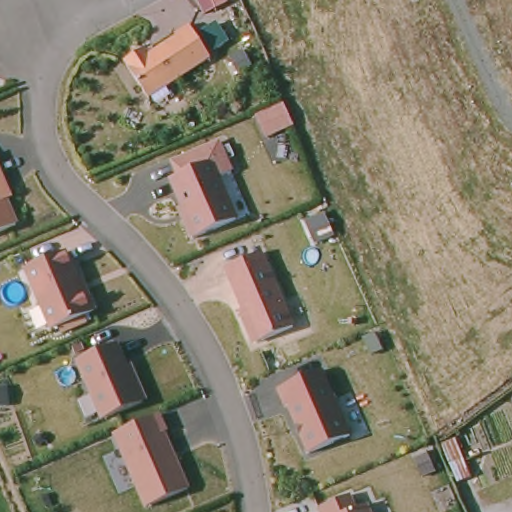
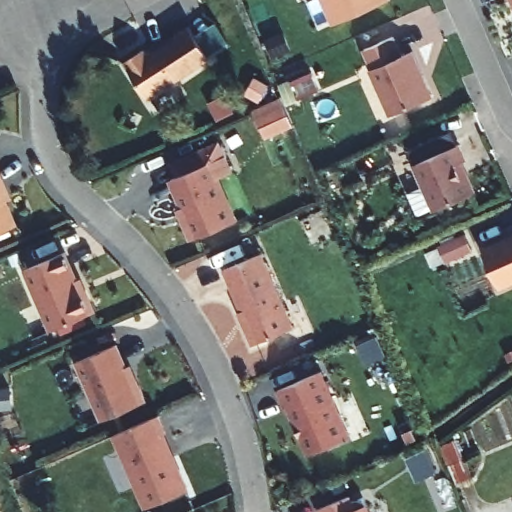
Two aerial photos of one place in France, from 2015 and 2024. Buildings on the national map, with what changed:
new [(390,0),(334,24),(323,0),(390,0)]
unchanged [(145,50),(149,56),(177,38),(176,36),(190,27),(211,60),(149,101),(125,63),(145,50)]
new [(372,69),(374,68),(366,49),(394,36),(402,55),(412,51),(432,98),(392,115),(372,69)]
new [(435,210),(434,208),(418,215),(408,193),(424,186),(408,150),(423,143),(451,131),(458,145),(430,158),(459,145),(466,160),(461,163),(475,193),(435,210)]
unchanged [(220,144),(233,174),(218,180),(237,223),(193,242),(185,221),(189,219),(173,181),(179,178),(173,165),(220,144)]
unchanged [(16,228),(0,235),(0,190),(16,228)]
new [(472,250),(446,261),(439,245),(465,234),(472,250)]
new [(512,237),(512,283),(500,288),(483,249),(512,237)]
unchanged [(65,254),(82,293),(85,292),(95,314),(52,333),(25,271),(65,254)]
unchanged [(243,313),(224,271),(261,255),(294,330),(257,346),(256,344),(251,343),(246,331),(239,314),(243,313)]
unchanged [(77,363),(116,347),(132,385),(139,387),(144,399),(141,406),(102,422),(77,363)]
unchanged [(322,372),(350,438),(308,456),(288,409),(286,410),(278,391),(322,372)]
unchanged [(126,432),(134,428),(144,424),(158,418),(166,435),(163,436),(169,448),(169,449),(168,450),(168,453),(170,458),(171,458),(172,458),(173,459),(174,459),(188,492),(146,510),(114,436),(126,432)]
unchanged [(457,484),(450,465),(449,466),(441,446),(455,440),(471,478),(457,484)]
unchanged [(350,498),(356,512),(367,507),(369,512),(318,512),(350,498)]

